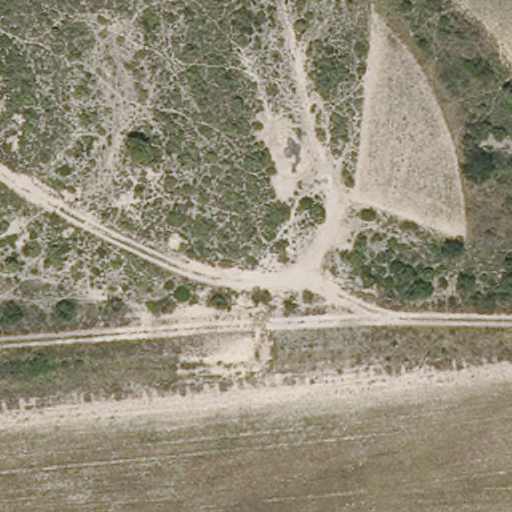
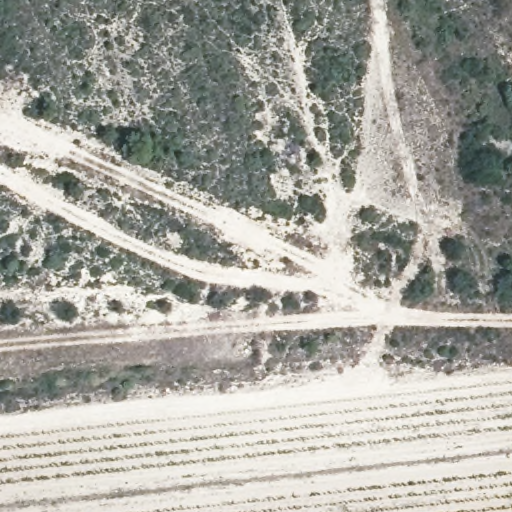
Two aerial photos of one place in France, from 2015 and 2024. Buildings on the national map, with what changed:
[]

